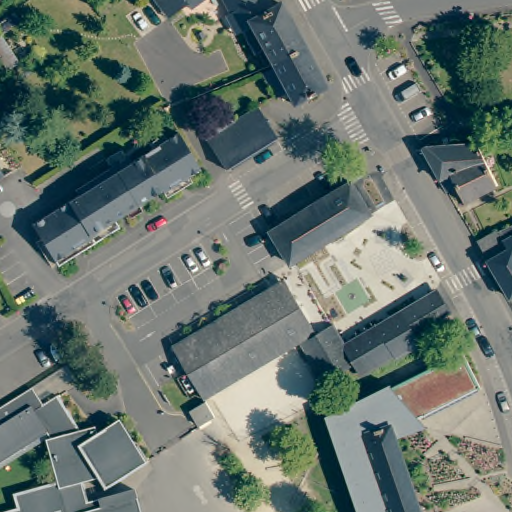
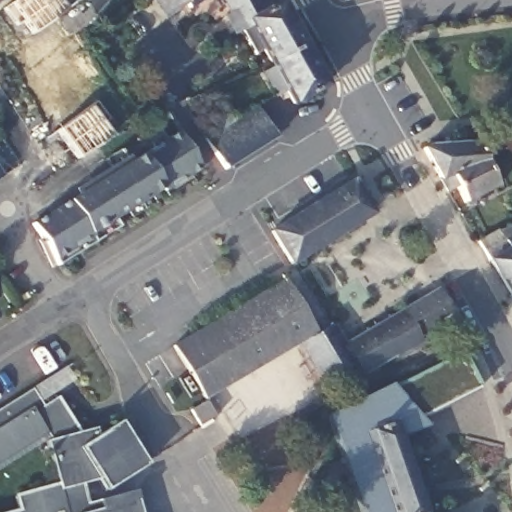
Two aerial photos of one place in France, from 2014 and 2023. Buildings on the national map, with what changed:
unchanged [(0,1),(0,0),(2,0),(0,1)]
unchanged [(190,8),(186,4),(174,14),(168,18),(154,0),(200,0),(190,8)]
unchanged [(224,0),(269,0),(272,7),(280,3),(304,48),(272,65),(263,50),(254,55),(241,31),(235,34),(225,16),(231,13),(224,0)]
unchanged [(325,86),(293,104),(286,92),(280,95),(277,89),(272,91),(262,73),(273,67),(272,65),(304,48),(325,86)]
unchanged [(257,150),(225,170),(216,155),(201,132),(229,114),(234,122),(246,114),(257,108),(276,138),(257,150)]
unchanged [(115,219),(120,227),(59,266),(32,224),(178,133),(200,169),(164,192),(162,189),(115,219)]
unchanged [(457,187),(448,192),(424,149),(426,148),(477,144),(498,186),(465,203),(457,187)]
unchanged [(0,178),(0,172),(3,177),(0,178)]
unchanged [(316,204),(352,182),(372,214),(341,235),(291,265),(287,258),(271,232),(316,204)]
unchanged [(511,298),(488,261),(478,242),(498,231),(512,225),(512,297),(511,298)]
unchanged [(205,400),(174,347),(175,346),(234,311),(285,280),(290,287),(317,334),(301,343),(205,400)]
unchanged [(418,337),(417,337),(401,311),(432,292),(439,294),(450,312),(436,320),(439,324),(418,337)]
unchanged [(421,343),(416,346),(396,358),(395,355),(377,326),(380,324),(401,311),(417,337),(418,337),(421,343)]
unchanged [(325,382),(322,377),(301,343),(317,334),(330,327),(332,325),(345,345),(343,346),(355,364),(325,382)]
unchanged [(366,372),(361,375),(355,364),(343,346),(345,345),(377,326),(395,355),(366,372)]
unchanged [(470,356),(488,392),(417,428),(398,392),(470,356)]
unchanged [(20,497),(63,485),(51,442),(55,441),(52,434),(0,467),(0,412),(37,389),(49,406),(64,397),(86,432),(100,428),(102,436),(125,422),(141,447),(152,465),(110,491),(104,480),(89,484),(94,504),(140,491),(146,512),(19,512),(25,511),(20,497)]
unchanged [(398,392),(417,428),(420,438),(402,444),(425,512),(365,512),(334,420),(397,390),(398,392)]
unchanged [(215,417),(200,426),(191,411),(206,402),(215,417)]

